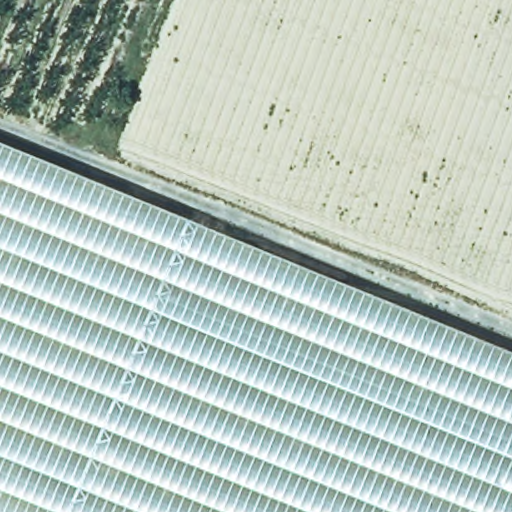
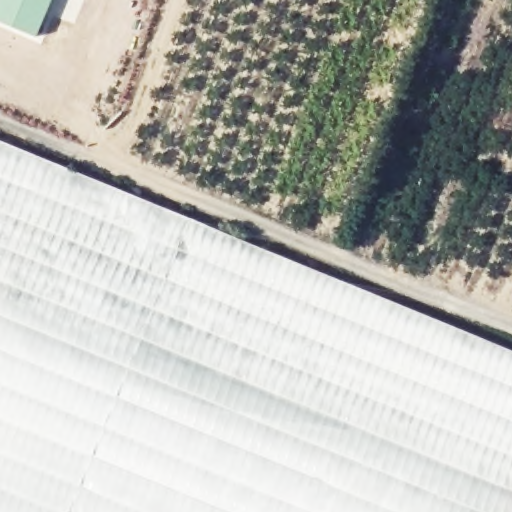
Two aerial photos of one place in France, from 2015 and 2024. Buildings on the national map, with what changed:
new [(54,0),(38,37),(0,21),(0,0),(54,0)]
unchanged [(181,237),(69,512),(0,512),(0,148),(186,223),(181,237)]
unchanged [(512,512),(69,512),(181,237),(186,223),(189,214),(303,262),(512,349),(512,512)]

